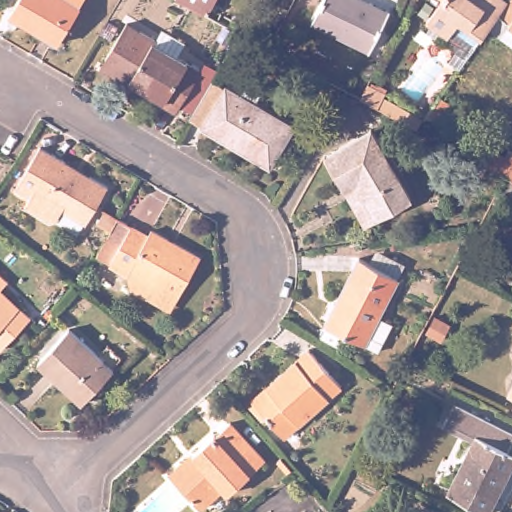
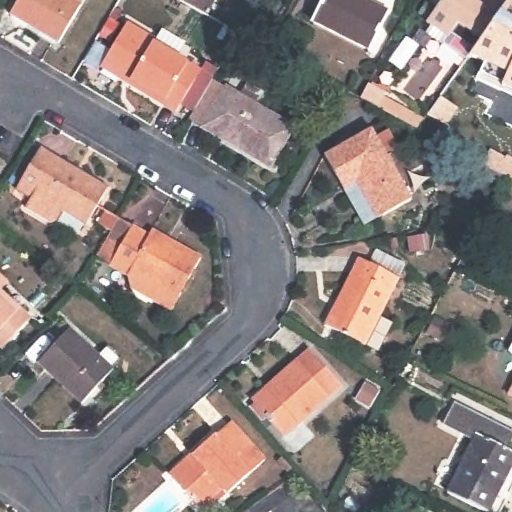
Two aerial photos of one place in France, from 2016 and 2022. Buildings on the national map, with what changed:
unchanged [(88,0),(83,10),(61,47),(12,17),(22,0),(88,0)]
unchanged [(171,0),(176,0),(175,2),(171,0)]
unchanged [(219,0),(209,20),(175,2),(176,0),(219,0)]
unchanged [(357,0),(389,17),(369,55),(314,25),(327,0),(357,0)]
unchanged [(498,14),(482,36),(460,20),(449,34),(428,19),(441,0),(508,0),(498,14)]
new [(512,0),(512,96),(476,79),(484,63),(471,57),(511,0),(512,0)]
demolished [(512,0),(512,23),(498,14),(508,0),(512,0)]
unchanged [(133,21),(161,38),(159,42),(206,69),(181,110),(167,102),(169,98),(108,63),(133,21)]
unchanged [(217,77),(299,125),(275,165),(238,142),(194,117),(217,77)]
unchanged [(464,114),(443,149),(360,105),(367,91),(369,87),(375,86),(384,91),(386,98),(427,122),(440,100),(464,114)]
unchanged [(347,190),(328,156),(374,130),(381,142),(414,201),(380,220),(368,227),(347,190)]
unchanged [(44,144),(111,185),(89,222),(65,208),(59,217),(52,220),(29,205),(35,195),(19,185),(44,144)]
unchanged [(505,160),(509,151),(512,153),(512,181),(505,177),(468,158),(476,145),(505,160)]
unchanged [(154,295),(133,285),(129,267),(113,258),(134,219),(151,229),(155,222),(204,251),(200,257),(182,290),(173,306),(154,295)]
unchanged [(363,255),(402,275),(383,313),(398,320),(383,350),(371,342),(330,323),(363,255)]
unchanged [(11,354),(0,343),(0,284),(29,311),(40,322),(11,354)]
unchanged [(69,330),(86,346),(112,371),(81,405),(38,364),(69,330)]
unchanged [(314,349),(328,366),(345,386),(287,435),(256,398),(314,349)]
unchanged [(512,394),(511,393),(512,391),(512,394)]
unchanged [(481,438),(450,423),(457,407),(512,432),(512,481),(497,512),(485,512),(455,498),(481,438)]
unchanged [(217,441),(219,441),(233,428),(268,467),(232,500),(226,493),(206,512),(201,512),(173,481),(217,441)]

